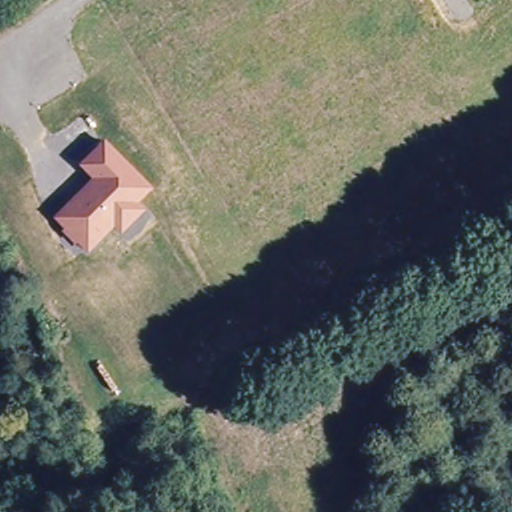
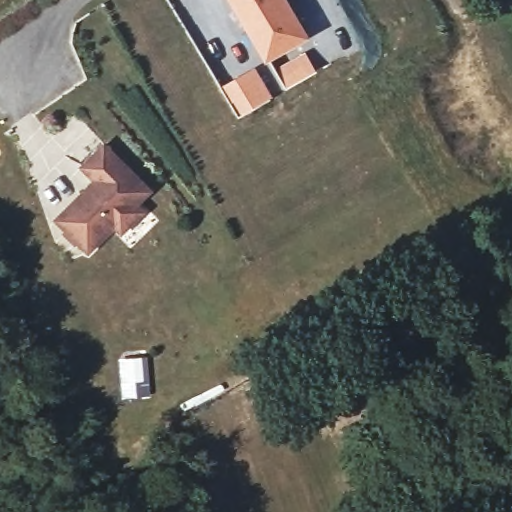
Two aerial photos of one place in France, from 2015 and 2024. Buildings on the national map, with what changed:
new [(269,61),(233,0),(286,0),(309,39),(298,45),(307,59),(317,76),(288,93),(278,76),(269,61)]
unchanged [(153,189),(140,203),(146,209),(122,234),(115,228),(88,254),(53,220),(93,179),(80,166),(105,141),(153,189)]

